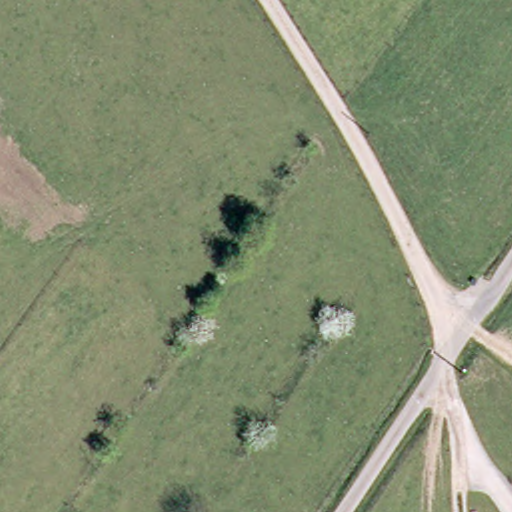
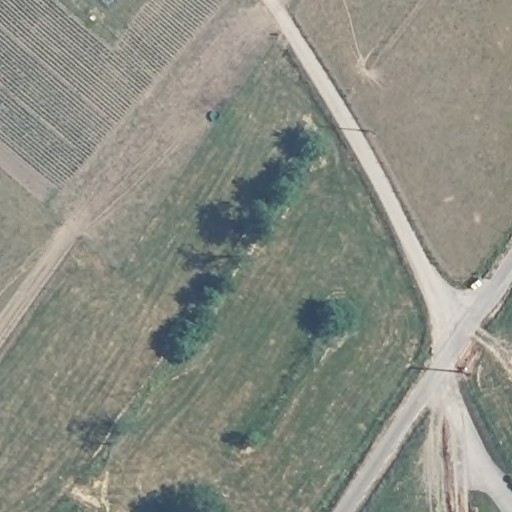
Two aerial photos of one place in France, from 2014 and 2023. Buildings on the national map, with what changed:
[]

